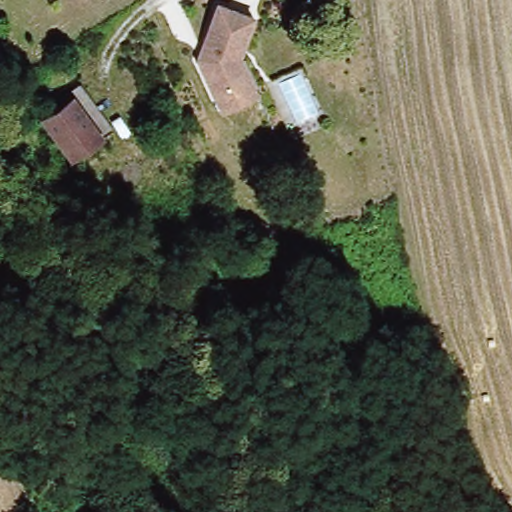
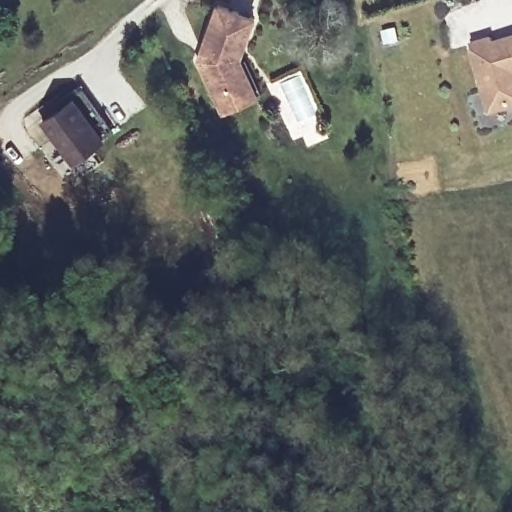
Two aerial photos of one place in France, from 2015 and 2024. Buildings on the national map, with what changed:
unchanged [(223,112),(217,96),(199,60),(220,5),(256,18),(240,57),(252,80),(259,97),(223,112)]
new [(468,46),(489,40),(490,46),(512,39),(512,106),(488,114),(468,46)]
unchanged [(42,125),(57,114),(52,107),(79,89),(111,136),(101,143),(70,165),(42,125)]

